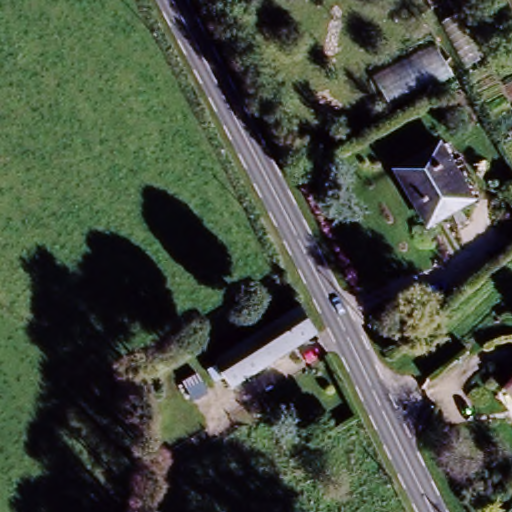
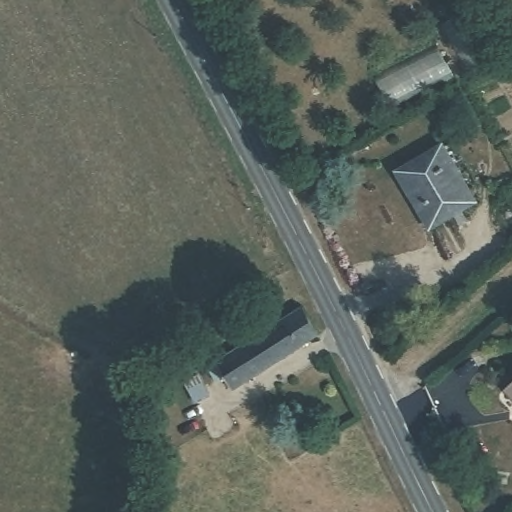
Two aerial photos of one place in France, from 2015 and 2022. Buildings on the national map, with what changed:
unchanged [(472,199),(428,224),(396,169),(440,143),(472,199)]
unchanged [(314,338),(235,389),(223,373),(212,379),(206,367),(297,312),(314,338)]
unchanged [(512,384),(512,393),(507,388),(512,384)]

